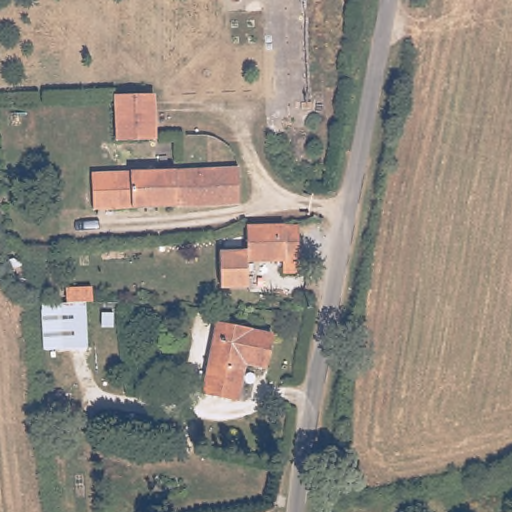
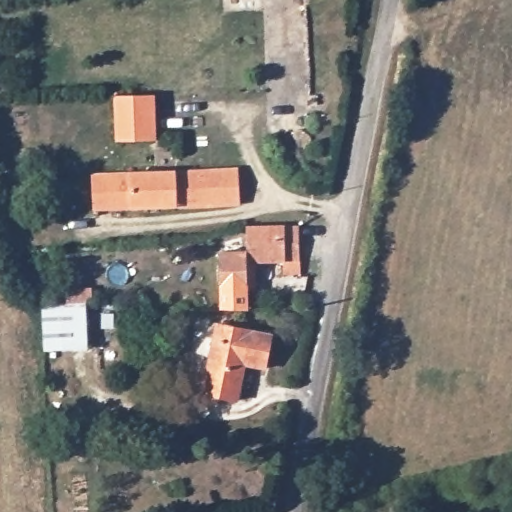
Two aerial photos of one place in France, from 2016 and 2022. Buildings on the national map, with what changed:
unchanged [(118,99),(156,98),(159,139),(121,142),(118,99)]
unchanged [(92,178),(241,173),(241,204),(94,211),(92,178)]
unchanged [(280,278),(280,265),(243,264),(242,291),(241,291),(215,290),(217,254),(218,254),(242,254),(244,229),(297,231),(296,278),(280,278)]
unchanged [(45,312),(90,305),(94,349),(49,354),(45,312)]
unchanged [(207,398),(223,329),(275,340),(268,374),(245,369),(237,404),(207,398)]

